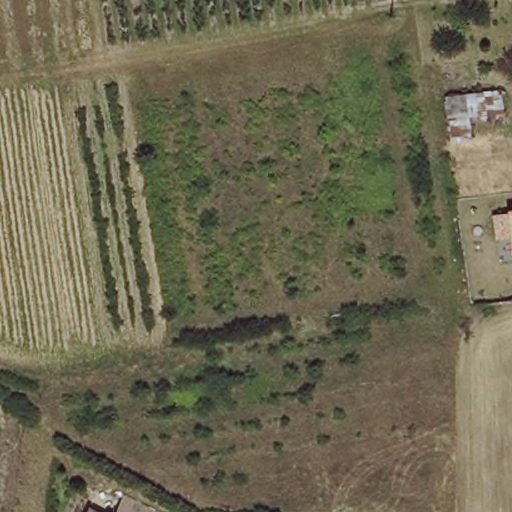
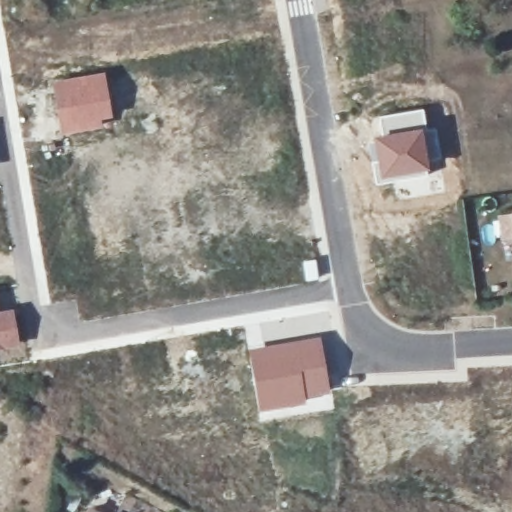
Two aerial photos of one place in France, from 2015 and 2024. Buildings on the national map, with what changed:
new [(104,71),(112,120),(103,122),(105,128),(60,137),(50,81),(104,71)]
new [(376,183),(370,136),(380,134),(376,116),(422,108),(426,128),(430,172),(376,183)]
unchanged [(512,224),(510,212),(512,212),(512,224)]
new [(13,307),(20,346),(0,349),(0,310),(13,307)]
new [(258,321),(263,346),(320,336),(330,398),(305,402),(306,405),(257,413),(242,324),(258,321)]
unchanged [(132,512),(120,512),(122,508),(132,512)]

